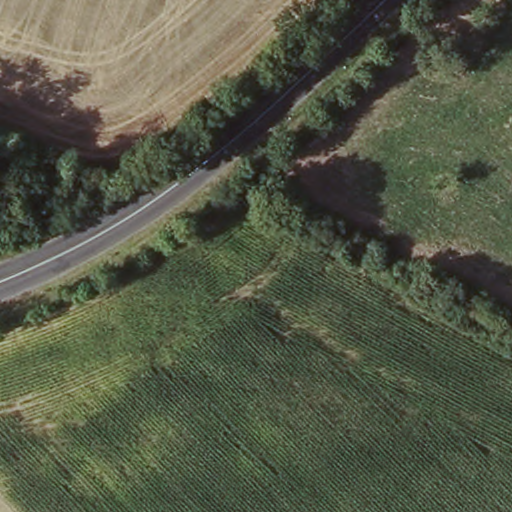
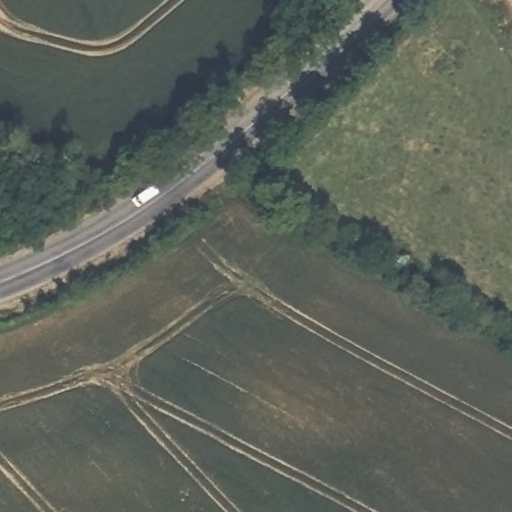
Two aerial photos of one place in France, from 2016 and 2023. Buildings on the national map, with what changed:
[]

